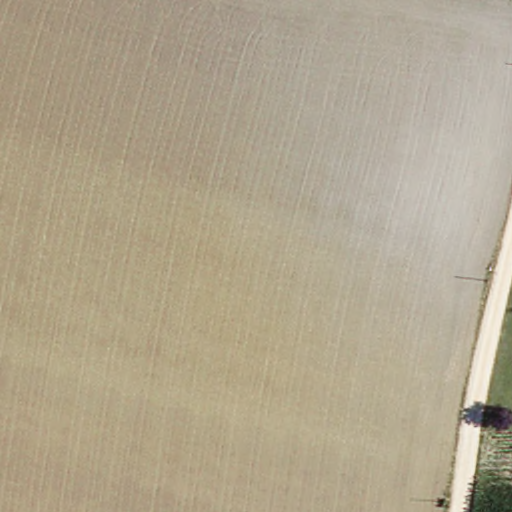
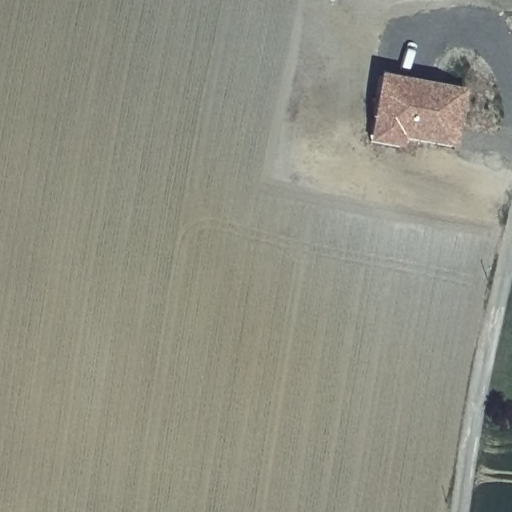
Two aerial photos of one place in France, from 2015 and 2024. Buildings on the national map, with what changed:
new [(455,137),(403,128),(400,147),(368,142),(379,78),(462,92),(455,137)]

